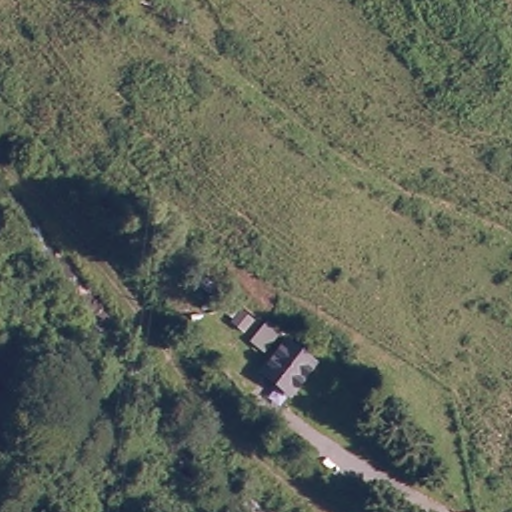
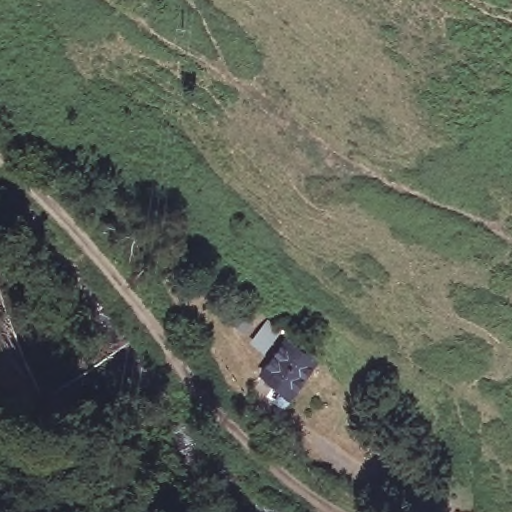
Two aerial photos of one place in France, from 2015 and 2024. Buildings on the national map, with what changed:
unchanged [(295,336),(325,359),(296,394),(267,371),(295,336)]

